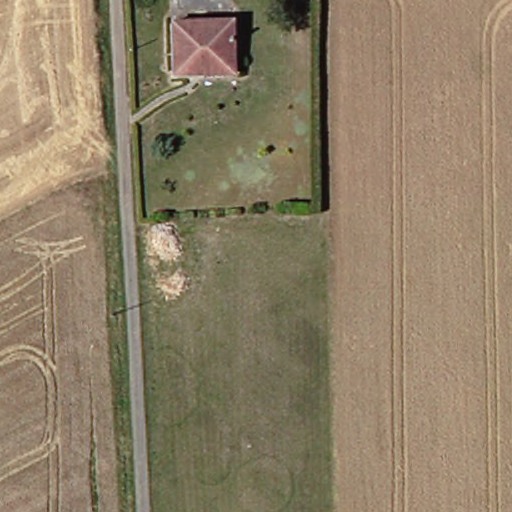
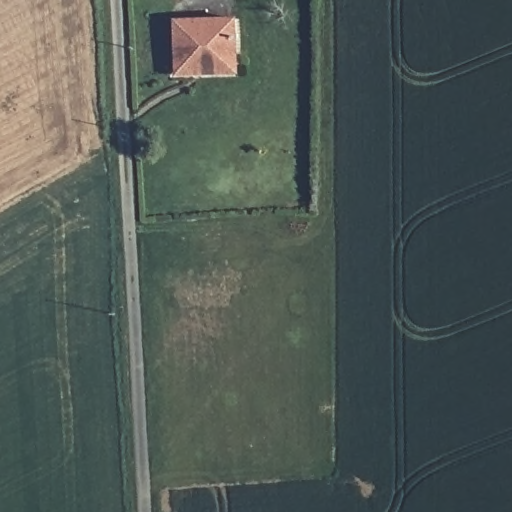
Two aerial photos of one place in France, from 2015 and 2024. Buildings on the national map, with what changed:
unchanged [(250,71),(206,72),(189,72),(189,20),(251,22),(252,60),(252,71),(250,71)]

